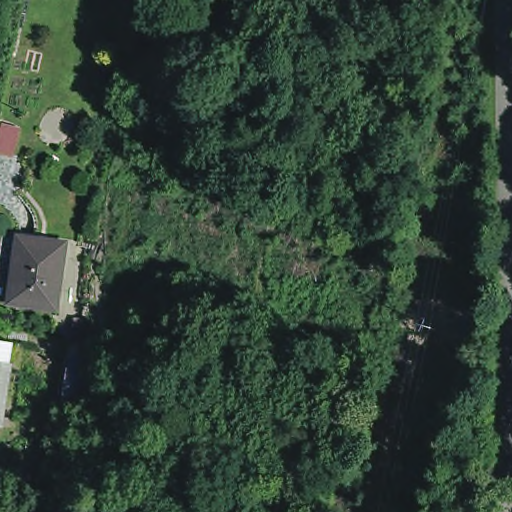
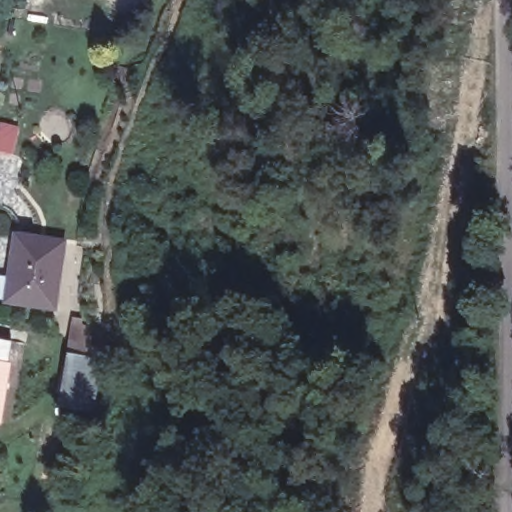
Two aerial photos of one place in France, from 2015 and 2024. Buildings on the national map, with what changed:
unchanged [(3,122),(0,149),(0,122),(3,122)]
unchanged [(56,323),(9,317),(18,253),(65,259),(56,323)]
unchanged [(66,351),(96,356),(89,408),(58,404),(66,351)]
unchanged [(8,367),(6,374),(0,418),(0,365),(8,367)]

